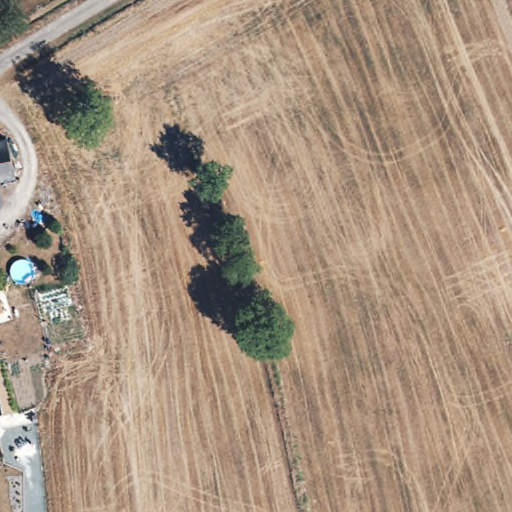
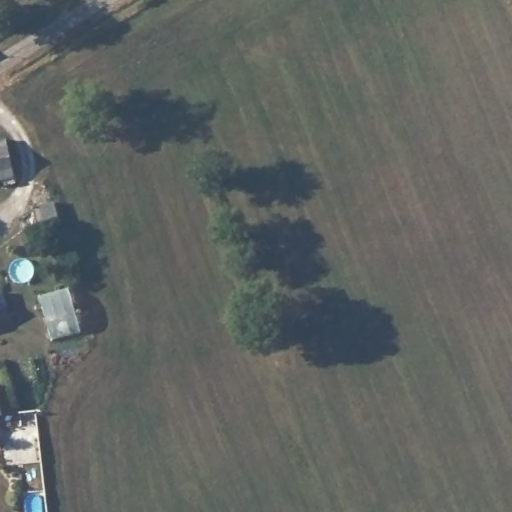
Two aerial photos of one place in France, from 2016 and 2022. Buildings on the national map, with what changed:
unchanged [(3,185),(0,185),(0,168),(3,185)]

